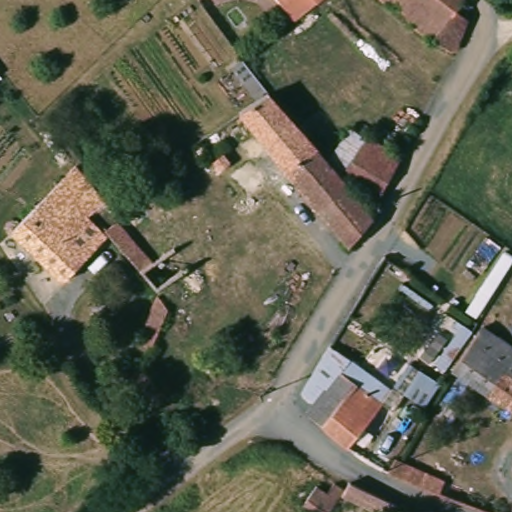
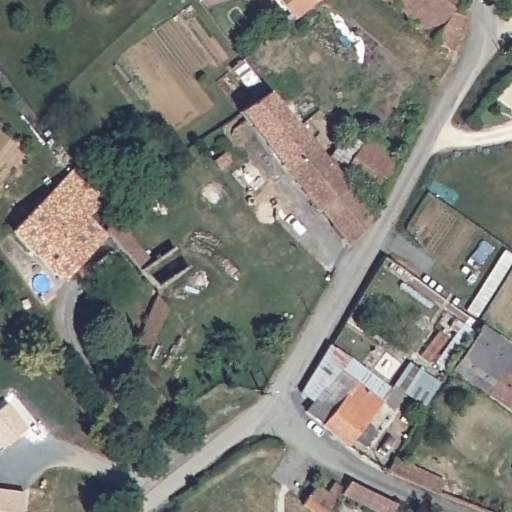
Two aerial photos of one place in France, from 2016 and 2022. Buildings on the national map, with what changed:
unchanged [(271,0),(325,0),(296,25),(295,25),(284,32),(279,26),(286,21),(271,0)]
unchanged [(402,16),(380,0),(463,0),(465,3),(466,4),(459,14),(468,21),(451,58),(398,21),(402,16)]
unchanged [(254,114),(273,99),(273,100),(301,136),(308,146),(329,173),(349,199),(338,207),(322,219),(297,189),(243,122),(254,114)]
unchanged [(366,146),(401,168),(385,195),(373,218),(342,182),(350,170),(366,146)]
unchanged [(104,247),(60,286),(8,233),(11,230),(75,168),(107,206),(89,221),(86,226),(104,247)]
unchanged [(338,207),(349,199),(370,225),(373,229),(350,254),(348,252),(322,219),(338,207)]
unchanged [(188,269),(182,274),(171,285),(157,298),(111,245),(104,238),(117,227),(153,266),(171,250),(188,269)]
unchanged [(457,382),(486,336),(512,350),(512,412),(457,382)]
unchanged [(479,344),(454,384),(443,376),(467,337),(479,344)]
unchanged [(302,394),(331,349),(394,394),(414,367),(445,389),(431,411),(411,397),(407,398),(396,411),(384,402),(352,446),(309,414),(316,405),(302,394)]
new [(27,429),(0,448),(0,408),(7,403),(27,429)]
unchanged [(395,457),(445,477),(440,491),(387,471),(395,457)]
unchanged [(366,512),(337,499),(341,493),(345,483),(392,507),(390,512),(366,512)]
new [(23,512),(0,512),(0,490),(25,493),(23,512)]

